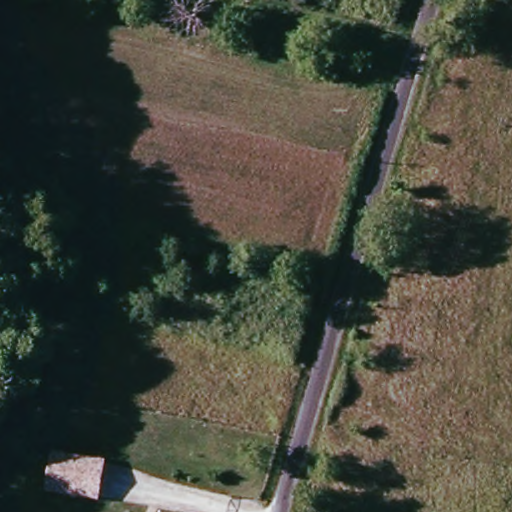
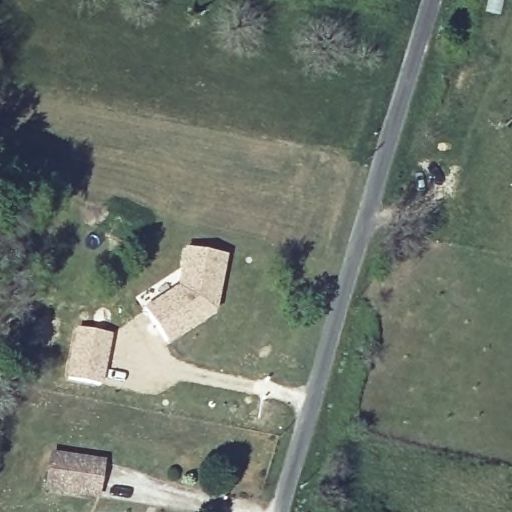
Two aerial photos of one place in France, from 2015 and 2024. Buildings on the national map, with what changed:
new [(214,312),(166,344),(142,308),(177,286),(183,247),(226,255),(214,312)]
new [(100,385),(65,381),(74,329),(110,335),(100,385)]
unchanged [(48,476),(49,473),(51,457),(102,464),(99,483),(97,500),(61,495),(45,492),(48,476)]

